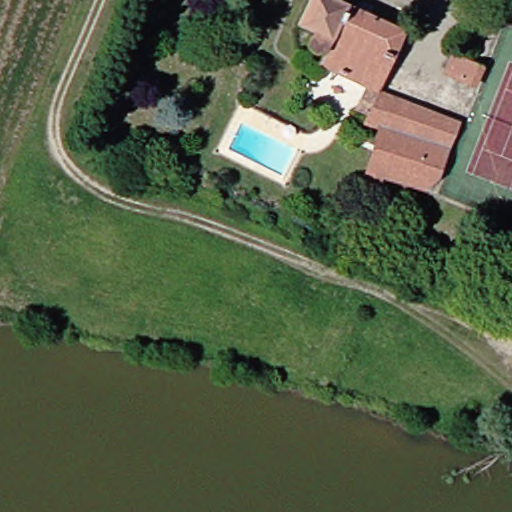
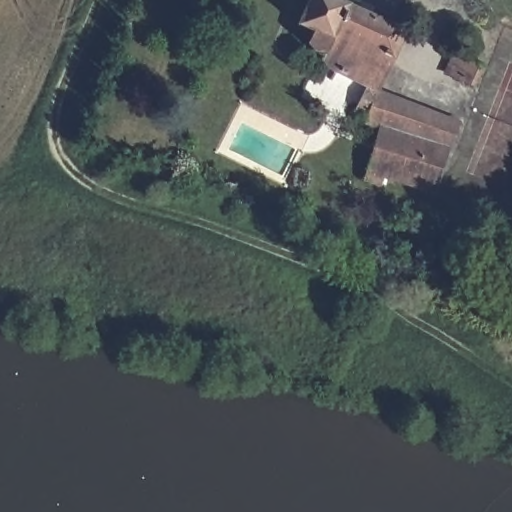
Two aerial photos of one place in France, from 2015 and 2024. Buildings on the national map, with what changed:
unchanged [(323,48),(313,42),(316,31),(306,26),(317,0),(348,0),(410,28),(388,85),(380,82),(321,56),(323,48)]
unchanged [(447,79),(453,57),(481,68),(475,89),(447,79)]
unchanged [(363,172),(385,121),(368,116),(380,82),(388,85),(466,122),(445,172),(415,178),(389,165),(380,182),(363,172)]

